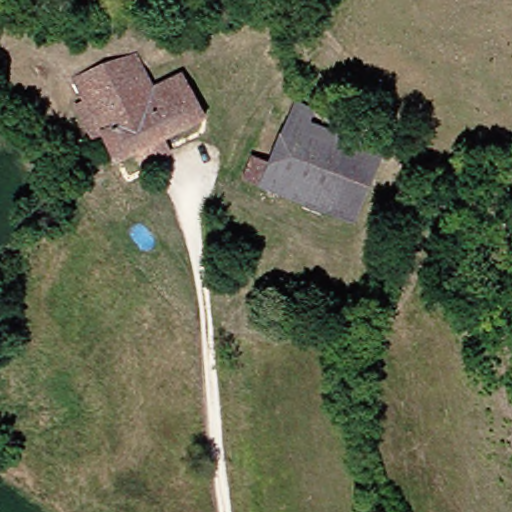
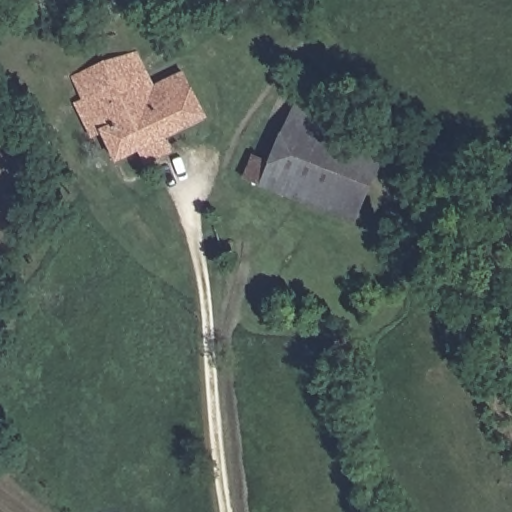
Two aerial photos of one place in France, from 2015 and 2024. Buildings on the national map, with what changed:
unchanged [(155,162),(148,150),(110,168),(94,140),(87,143),(68,105),(76,101),(67,81),(135,52),(151,86),(180,74),(200,120),(166,135),(169,140),(175,151),(155,162)]
unchanged [(236,177),(246,155),(256,159),(262,147),(255,144),(269,115),(280,121),(291,100),(321,115),(314,128),(349,146),(319,214),(236,177)]
unchanged [(376,159),(346,225),(319,214),(349,146),(376,159)]

